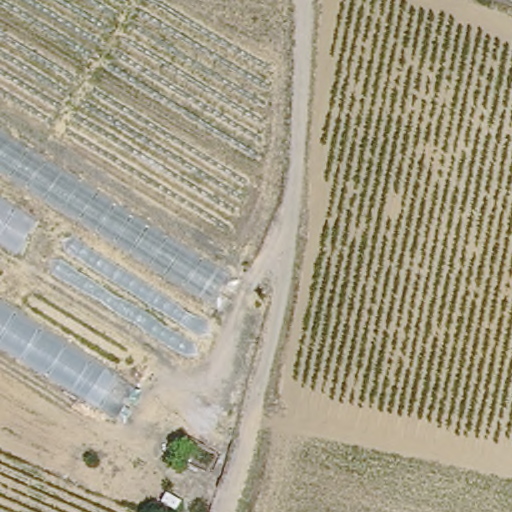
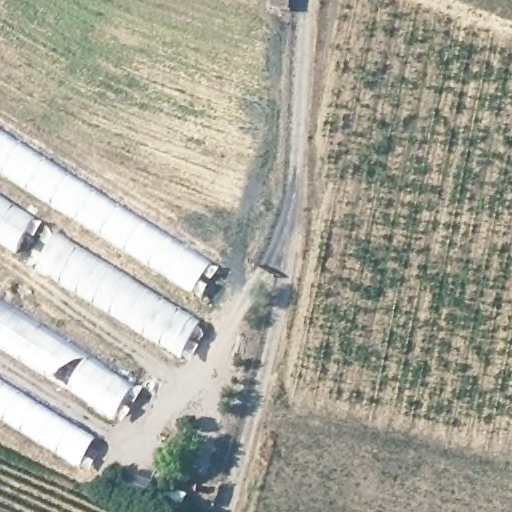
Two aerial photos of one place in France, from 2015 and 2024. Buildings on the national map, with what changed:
unchanged [(215,299),(0,168),(0,131),(230,274),(215,299)]
unchanged [(27,258),(0,241),(0,194),(48,224),(27,258)]
unchanged [(206,319),(188,357),(50,269),(72,236),(206,319)]
unchanged [(0,294),(150,386),(125,427),(0,348),(0,294)]
new [(0,418),(0,380),(97,438),(82,467),(0,418)]
new [(130,482),(134,474),(152,482),(149,491),(154,493),(148,508),(110,494),(118,477),(130,482)]

